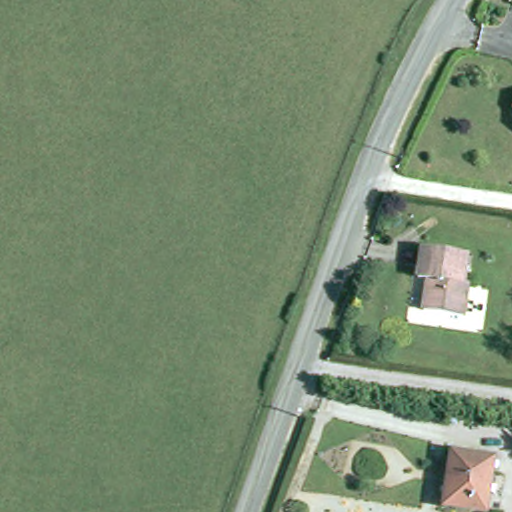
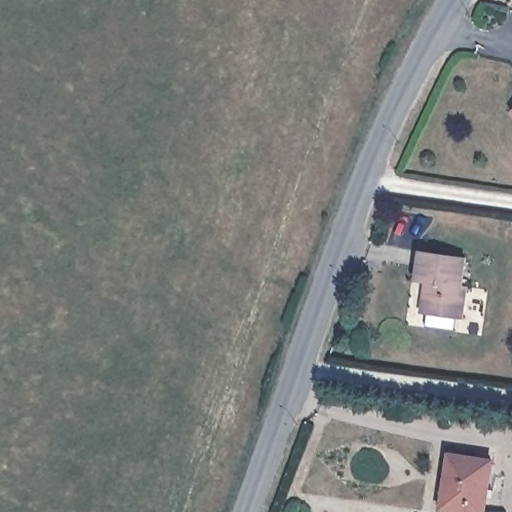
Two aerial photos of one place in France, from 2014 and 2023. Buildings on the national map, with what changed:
unchanged [(425,308),(430,278),(420,276),(425,246),(470,253),(465,281),(471,282),(466,315),(425,308)]
unchanged [(445,505),(451,452),(495,457),(489,510),(445,505)]

